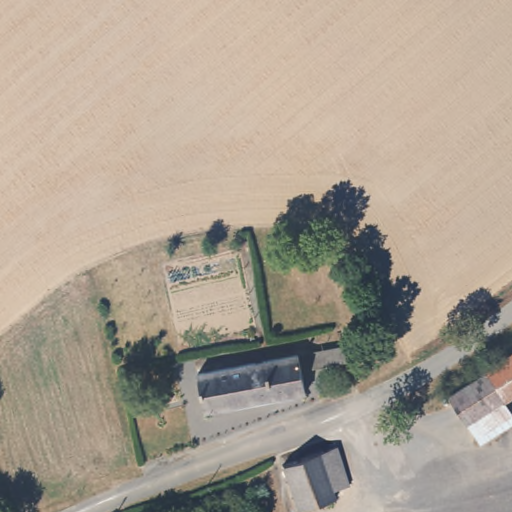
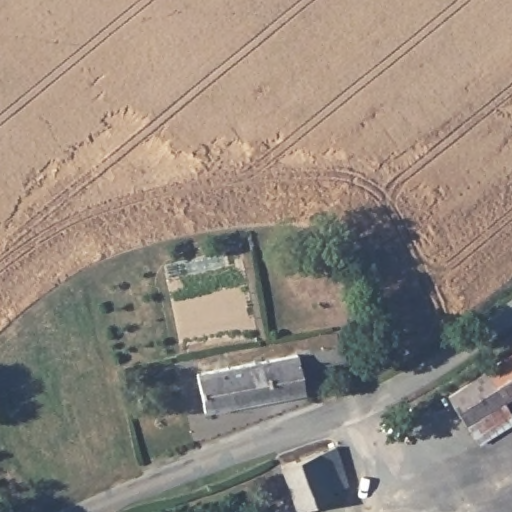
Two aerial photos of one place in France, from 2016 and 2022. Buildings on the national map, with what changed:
unchanged [(332,347),(335,362),(302,369),(299,353),(332,347)]
unchanged [(254,362),(291,355),(297,389),(195,408),(189,374),(254,362)]
unchanged [(512,398),(504,403),(486,375),(512,358),(512,398)]
unchanged [(486,375),(504,403),(466,427),(448,399),(486,375)]
unchanged [(512,427),(479,448),(466,427),(504,403),(512,415),(512,427)]
unchanged [(331,452),(343,484),(324,491),(327,499),(296,511),(281,471),(331,452)]

